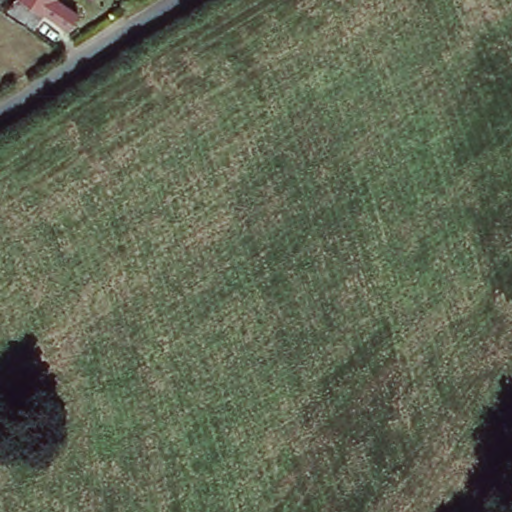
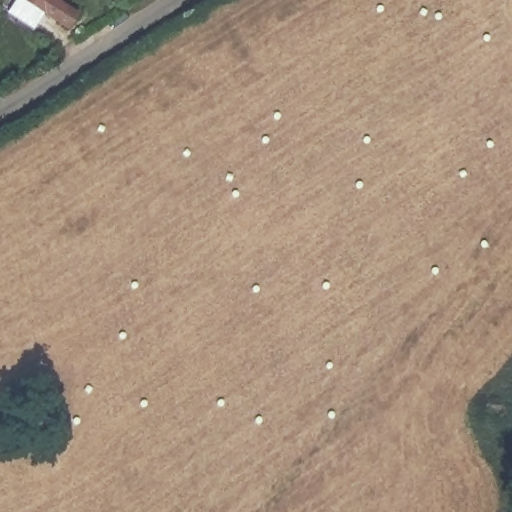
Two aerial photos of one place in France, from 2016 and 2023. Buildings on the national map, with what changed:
unchanged [(45,9),(42,8),(34,21),(10,5),(14,0),(51,0),(45,9)]
unchanged [(42,8),(45,9),(51,0),(59,0),(77,12),(65,29),(40,11),(42,8)]

